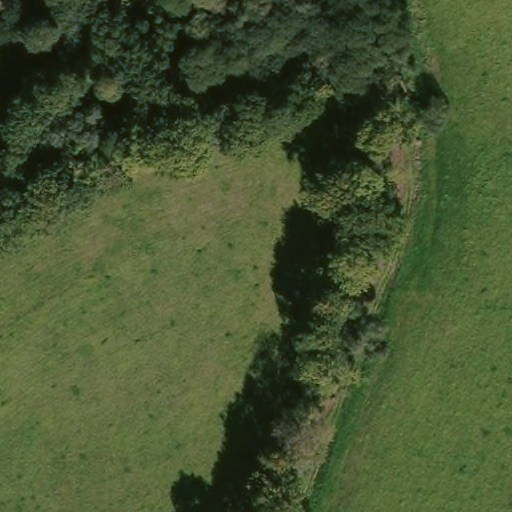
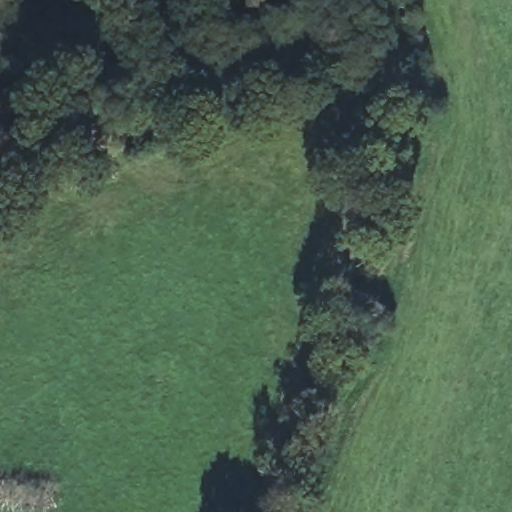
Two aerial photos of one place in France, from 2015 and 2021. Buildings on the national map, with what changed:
[]

